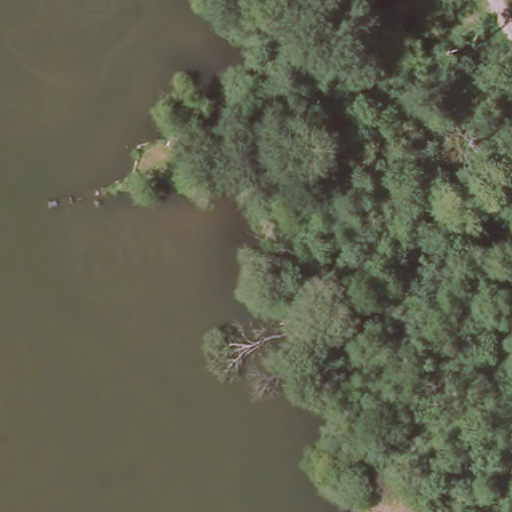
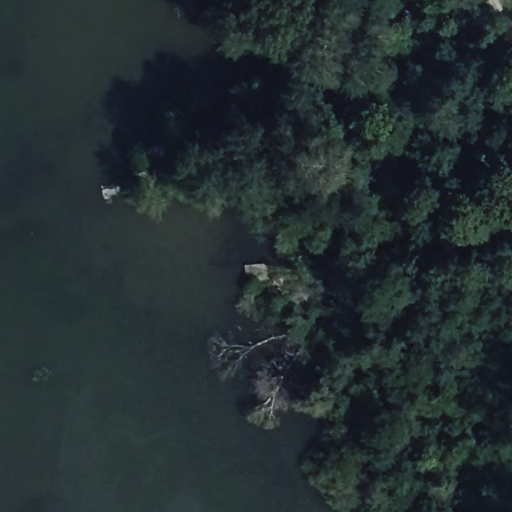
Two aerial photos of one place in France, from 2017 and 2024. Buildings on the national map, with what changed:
unchanged [(326,82),(315,85),(312,74),(323,71),(326,82)]
unchanged [(260,287),(247,291),(244,283),(257,279),(260,287)]

